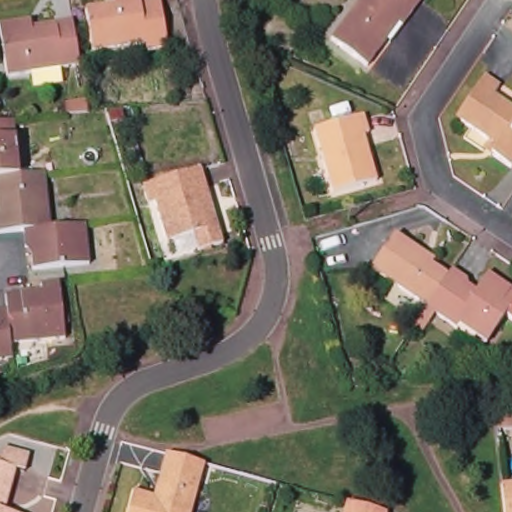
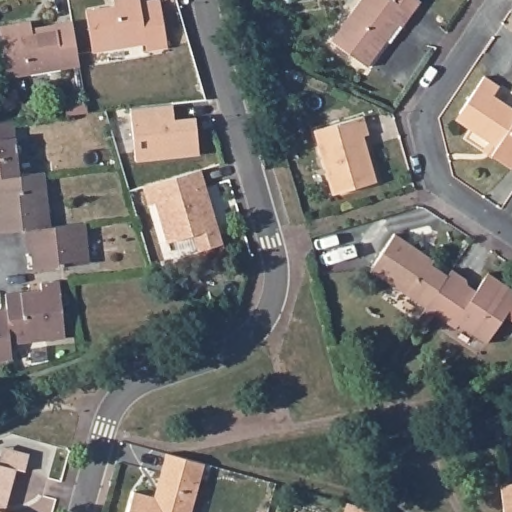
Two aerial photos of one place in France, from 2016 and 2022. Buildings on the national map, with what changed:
unchanged [(147,51),(146,44),(92,53),(86,11),(114,6),(113,0),(140,0),(140,2),(153,0),(160,0),(168,48),(147,51)]
unchanged [(387,41),(367,68),(331,41),(361,0),(420,0),(421,1),(390,44),(387,41)]
unchanged [(7,78),(0,36),(0,26),(31,21),(32,34),(56,29),(55,24),(72,21),(80,66),(7,78)]
unchanged [(482,151),(487,144),(488,141),(462,123),(460,113),(483,77),(500,88),(493,96),(512,109),(512,166),(511,169),(491,155),(491,156),(482,151)]
unchanged [(87,113),(67,115),(66,104),(86,101),(87,113)]
new [(172,104),(173,120),(195,118),(199,154),(135,161),(129,109),(172,104)]
unchanged [(368,134),(363,136),(377,182),(332,194),(314,130),(362,116),(368,134)]
unchanged [(0,177),(0,122),(14,120),(20,175),(0,177)]
unchanged [(201,169),(222,243),(199,250),(194,234),(167,242),(155,202),(148,204),(143,185),(201,169)]
unchanged [(24,230),(0,233),(0,177),(20,175),(45,173),(51,228),(24,230)]
unchanged [(90,264),(33,269),(31,247),(26,248),(24,230),(51,228),(85,224),(90,264)]
unchanged [(427,308),(426,309),(371,270),(395,234),(425,254),(434,260),(431,265),(448,275),(427,308)]
unchanged [(487,344),(458,324),(455,329),(434,314),(421,335),(412,329),(426,309),(427,308),(448,275),(452,269),(467,279),(468,292),(473,295),(475,293),(488,273),(512,289),(512,306),(487,344)]
unchanged [(66,339),(11,344),(7,309),(6,295),(42,290),(41,284),(60,282),(66,339)]
unchanged [(12,359),(0,361),(0,310),(7,309),(11,344),(12,359)]
unchanged [(29,460),(25,477),(16,474),(5,512),(0,512),(0,462),(2,453),(29,460)]
unchanged [(132,493),(150,498),(162,454),(199,464),(186,512),(126,512),(132,493)]
unchanged [(501,485),(512,484),(512,512),(504,512),(501,485)]
unchanged [(380,512),(345,512),(347,503),(380,512)]

